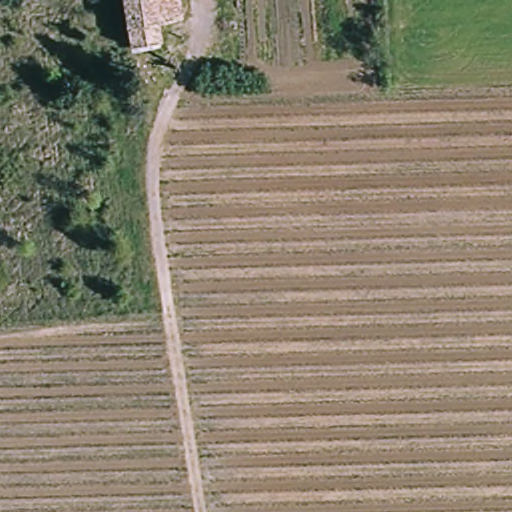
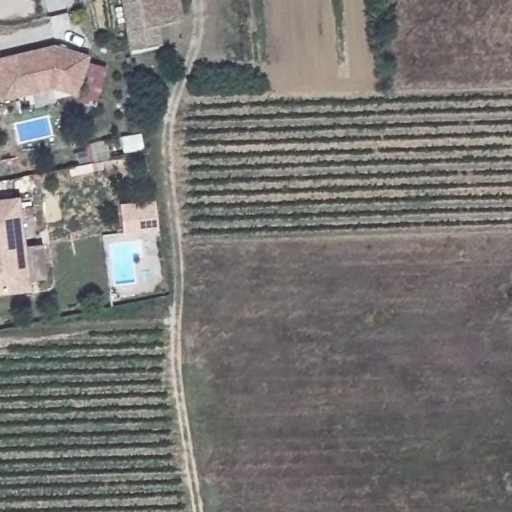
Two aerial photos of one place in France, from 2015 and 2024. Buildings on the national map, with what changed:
unchanged [(154,36),(130,40),(124,20),(120,0),(173,0),(175,10),(179,32),(154,36)]
new [(92,55),(81,94),(57,86),(6,101),(0,80),(0,60),(57,45),(92,55)]
new [(25,290),(0,292),(0,204),(17,202),(25,290)]

